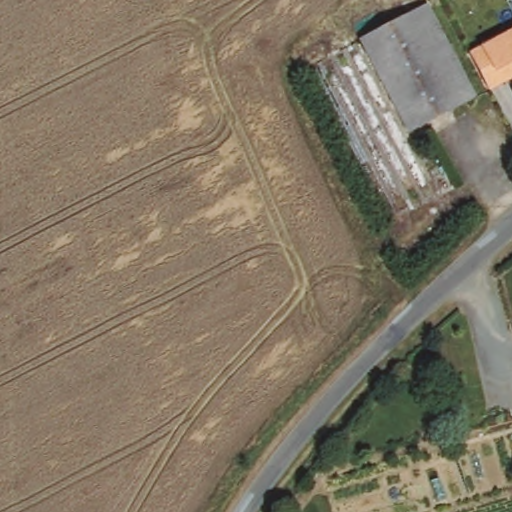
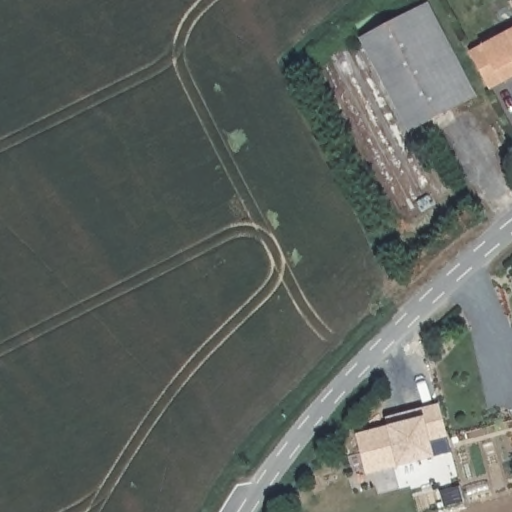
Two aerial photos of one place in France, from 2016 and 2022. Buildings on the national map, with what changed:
unchanged [(478,101),(414,138),(365,45),(430,10),(478,101)]
unchanged [(489,92),(488,92),(469,55),(479,49),(512,32),(512,81),(489,92)]
new [(354,433),(387,425),(385,416),(439,403),(447,436),(430,440),(434,458),(397,466),(367,474),(354,433)]

